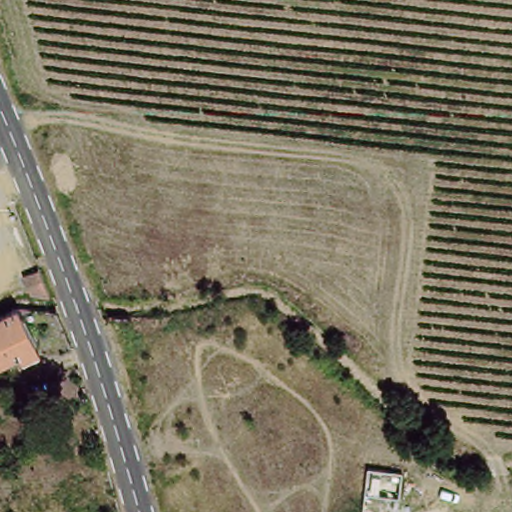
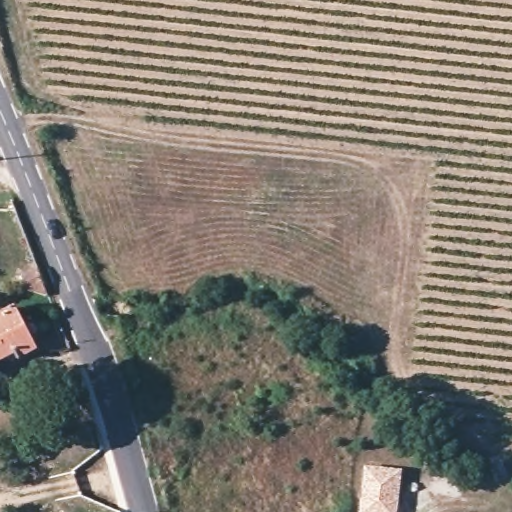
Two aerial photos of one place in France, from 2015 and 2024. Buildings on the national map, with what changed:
unchanged [(48,298),(30,297),(21,265),(38,263),(51,296),(48,298)]
unchanged [(37,341),(19,352),(16,348),(0,358),(0,313),(14,304),(37,341)]
unchanged [(138,309),(146,333),(130,337),(121,310),(138,309)]
new [(399,512),(361,512),(367,466),(404,470),(399,512)]

